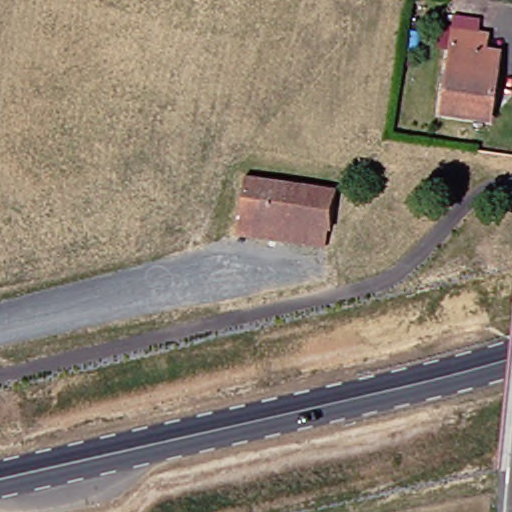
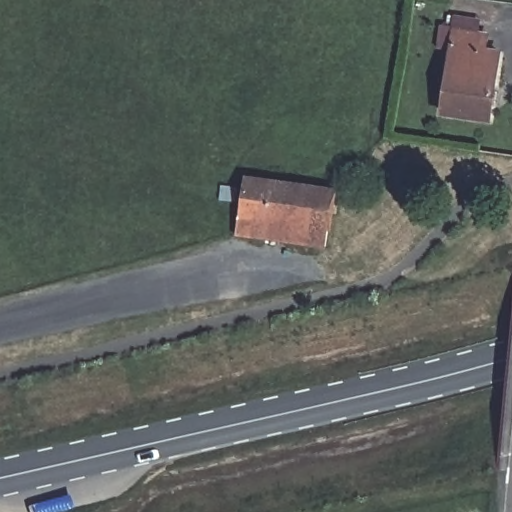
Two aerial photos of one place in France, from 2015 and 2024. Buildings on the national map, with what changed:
unchanged [(486,55),(501,57),(490,122),(443,116),(456,35),(488,40),(486,55)]
unchanged [(327,244),(240,233),(246,181),(334,194),(327,244)]

